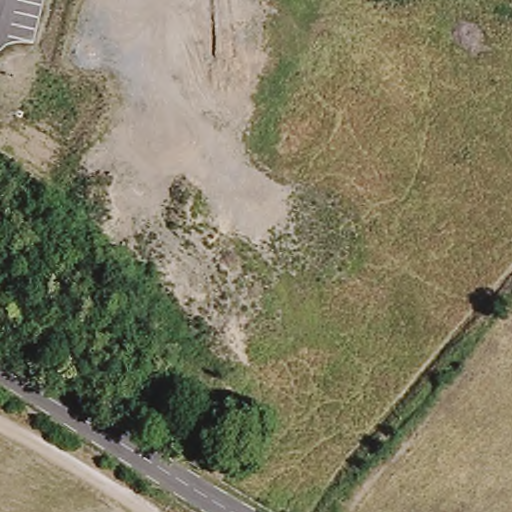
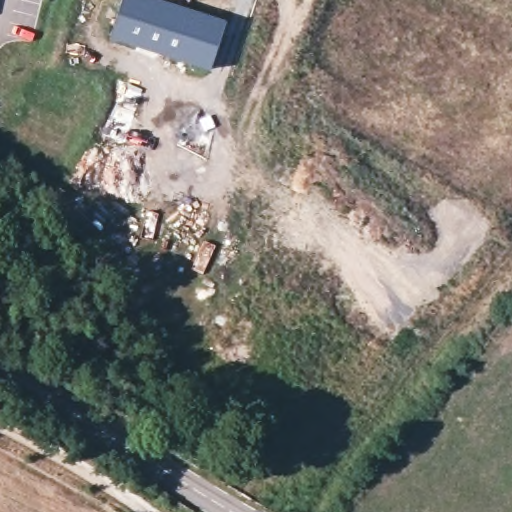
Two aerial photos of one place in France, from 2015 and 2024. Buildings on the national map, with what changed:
new [(165,0),(226,19),(210,69),(110,38),(122,0),(165,0)]
demolished [(200,367),(235,386),(217,416),(187,396),(200,367)]

